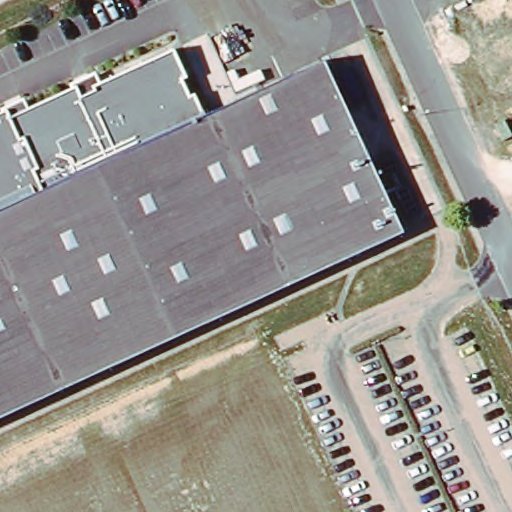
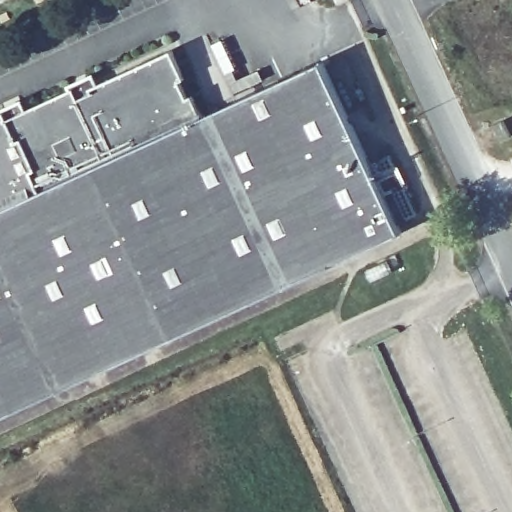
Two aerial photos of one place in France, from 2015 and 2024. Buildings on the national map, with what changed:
unchanged [(181,75),(177,77),(187,99),(192,97),(200,116),(321,60),(402,234),(0,419),(0,120),(2,119),(76,86),(89,79),(92,86),(170,50),(181,75)]
unchanged [(495,116),(502,132),(491,137),(483,120),(495,116)]

